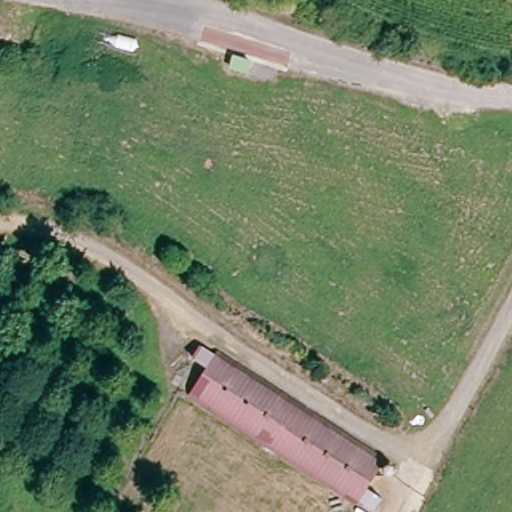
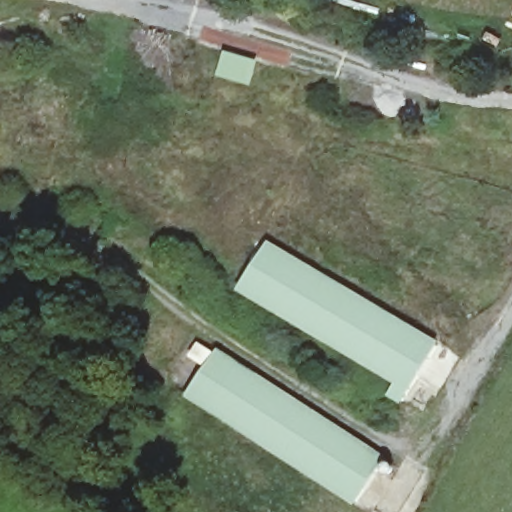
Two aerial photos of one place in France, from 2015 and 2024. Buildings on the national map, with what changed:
new [(389,397),(397,383),(238,291),(268,241),(441,342),(402,404),(389,397)]
unchanged [(191,388),(179,375),(195,346),(360,451),(394,468),(388,479),(378,475),(366,489),(382,499),(373,512),(363,512),(186,401),(191,388)]

